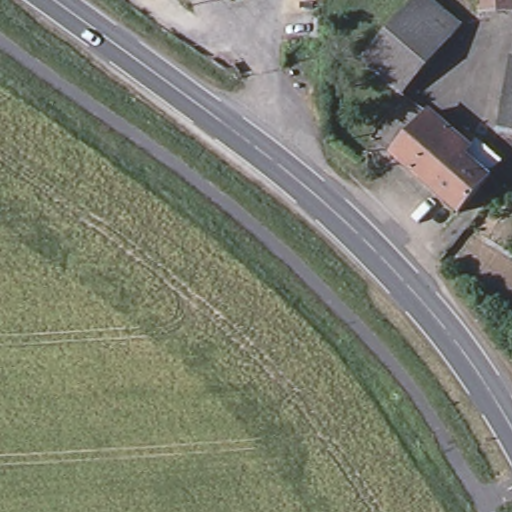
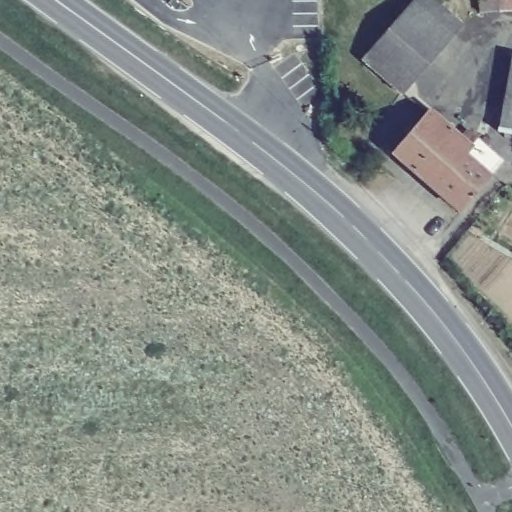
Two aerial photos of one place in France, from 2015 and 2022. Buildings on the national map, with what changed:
unchanged [(398,94),(361,61),(413,0),(428,0),(457,24),(398,94)]
unchanged [(480,16),(479,0),(512,0),(512,13),(480,16)]
unchanged [(499,140),(512,69),(512,141),(499,140)]
unchanged [(468,157),(431,199),(391,166),(425,125),(468,157)]
unchanged [(500,182),(508,164),(505,162),(512,151),(512,188),(500,182)]
unchanged [(468,157),(496,177),(459,222),(431,199),(468,157)]

